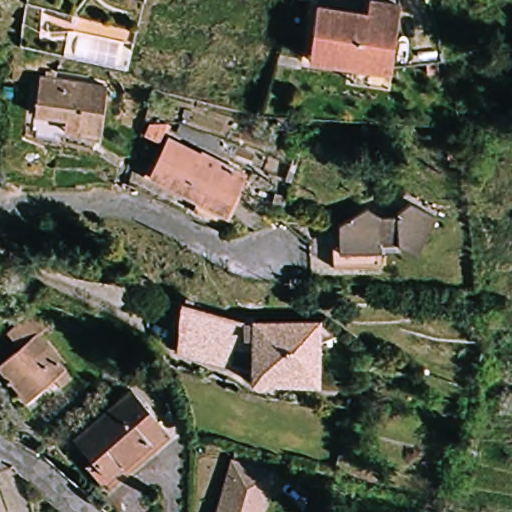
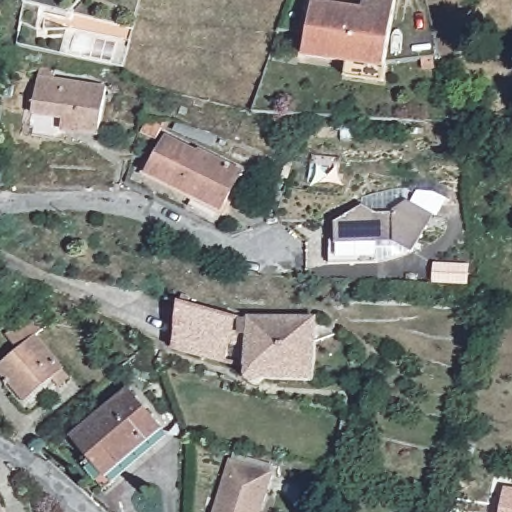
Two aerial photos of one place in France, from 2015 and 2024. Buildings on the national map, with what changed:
unchanged [(321,5),(361,20),(368,5),(403,19),(378,88),(302,59),(321,5)]
unchanged [(62,131),(63,120),(34,117),(40,76),(109,87),(99,137),(62,131)]
unchanged [(223,211),(140,177),(159,139),(242,174),(223,211)]
unchanged [(366,216),(397,210),(406,197),(433,214),(423,227),(416,244),(397,231),(376,235),(339,244),(331,220),(361,205),(366,216)]
unchanged [(177,303),(245,320),(315,317),(314,378),(251,380),(249,348),(230,347),(228,365),(175,350),(177,303)]
unchanged [(0,365),(0,363),(22,346),(10,330),(32,313),(45,330),(38,336),(64,370),(26,397),(0,365)]
unchanged [(136,390),(166,431),(124,460),(102,475),(73,435),(123,399),(136,390)]
unchanged [(256,512),(216,512),(223,463),(262,471),(256,512)]
unchanged [(0,512),(0,485),(5,512),(0,512)]
new [(512,488),(512,512),(499,512),(501,487),(512,488)]

